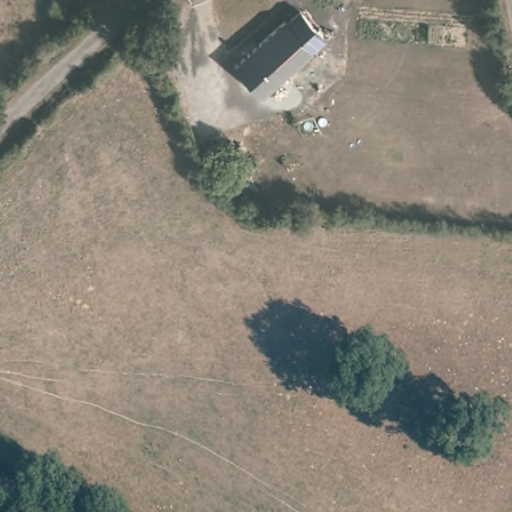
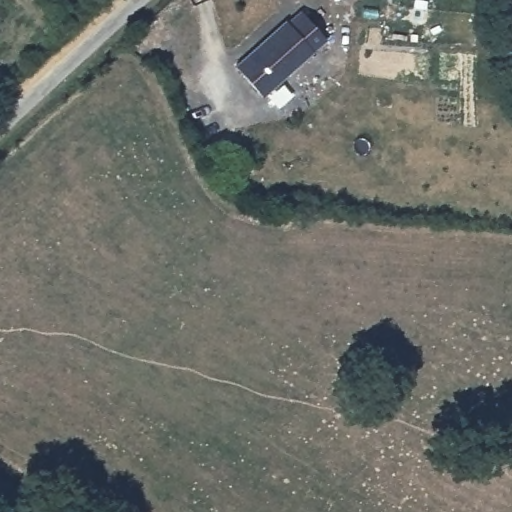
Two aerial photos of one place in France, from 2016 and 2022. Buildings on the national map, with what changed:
unchanged [(321,38),(257,97),(230,67),(293,9),(321,38)]

